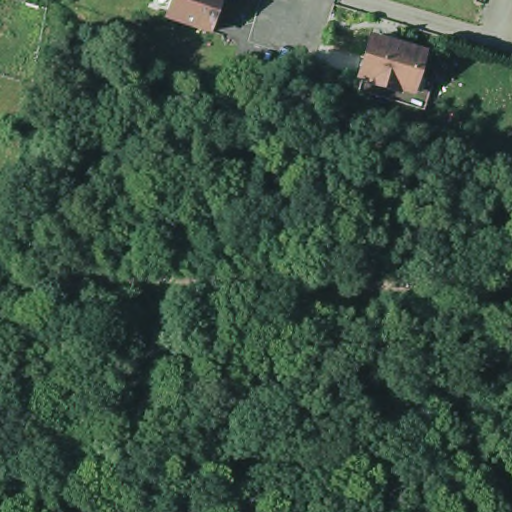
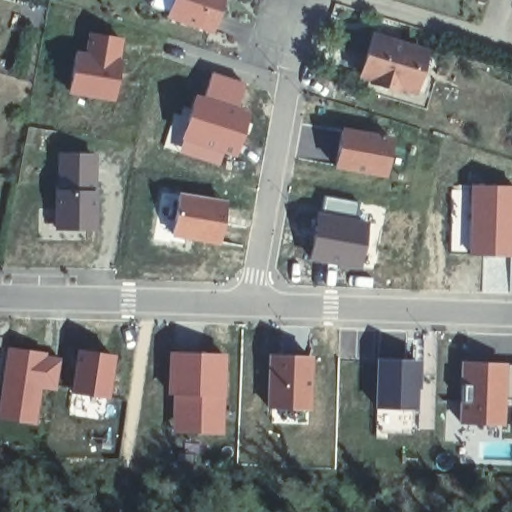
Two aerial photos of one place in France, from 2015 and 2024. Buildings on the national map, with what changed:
unchanged [(171,0),(227,0),(211,34),(165,19),(171,0)]
unchanged [(8,23),(2,37),(0,36),(0,6),(12,11),(8,23)]
new [(116,98),(69,91),(75,51),(85,51),(89,34),(125,39),(116,98)]
unchanged [(420,51),(408,89),(392,85),(391,90),(373,84),(375,79),(361,75),(358,74),(369,36),(420,51)]
new [(246,84),(240,108),(250,114),(237,157),(225,154),(221,169),(180,156),(181,143),(194,95),(203,98),(211,74),(246,84)]
new [(394,140),(388,179),(336,172),(342,129),(394,140)]
new [(98,229),(56,227),(56,154),(98,154),(98,229)]
new [(470,255),(472,184),(512,184),(512,255),(470,255)]
new [(227,202),(221,246),(171,239),(177,195),(227,202)]
new [(358,203),(355,220),(364,223),(360,269),(310,262),(316,211),(320,213),(323,196),(358,203)]
new [(60,359),(58,389),(42,388),(39,424),(0,420),(0,397),(8,349),(48,352),(47,358),(60,359)]
new [(112,399),(70,393),(77,349),(116,356),(112,399)]
new [(224,436),(175,433),(175,351),(227,354),(224,436)]
new [(313,409),(266,408),(268,354),(315,355),(313,409)]
new [(419,359),(416,412),(375,413),(376,359),(419,359)]
new [(507,364),(512,364),(512,400),(506,401),(505,425),(460,424),(461,363),(507,364)]

